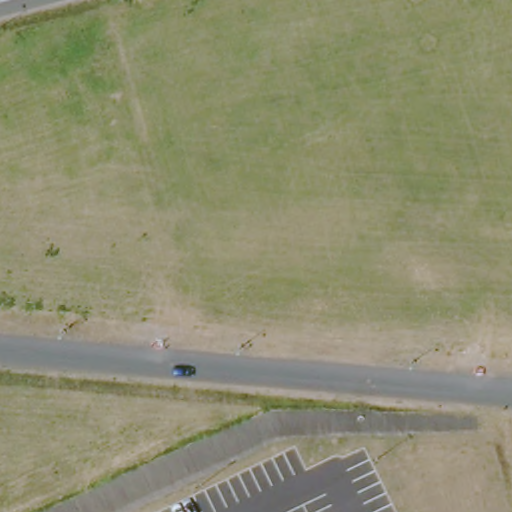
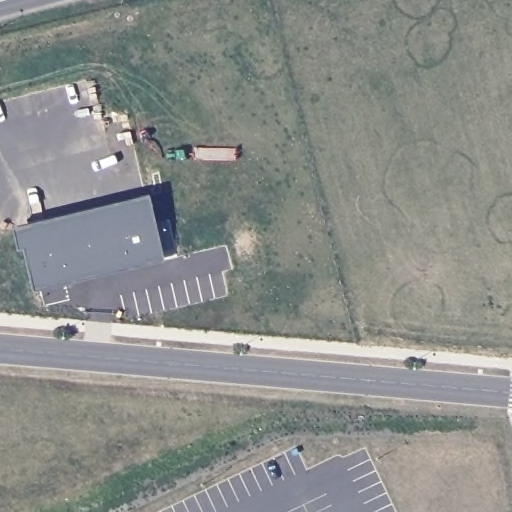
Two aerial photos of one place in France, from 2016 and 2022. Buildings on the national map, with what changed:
new [(149,194),(165,259),(33,290),(23,247),(17,249),(11,226),(149,194)]

